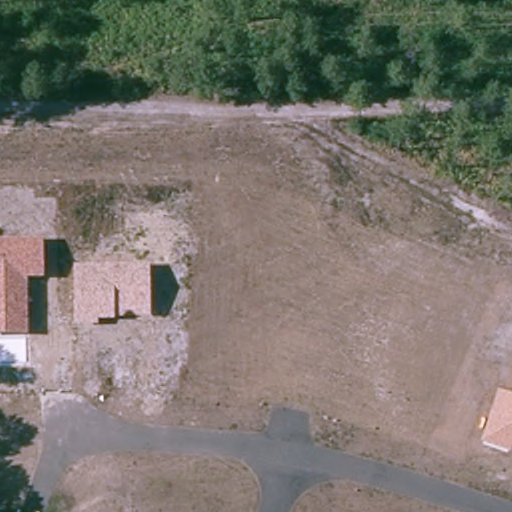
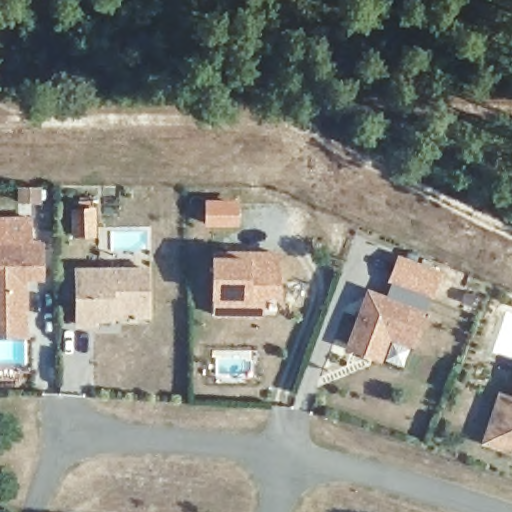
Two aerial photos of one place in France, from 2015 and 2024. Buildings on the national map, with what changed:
unchanged [(0,241),(43,241),(44,282),(27,282),(29,337),(0,337),(0,241)]
new [(251,255),(251,250),(281,250),(281,298),(263,298),(264,318),(212,317),(211,297),(212,255),(251,255)]
new [(386,295),(391,283),(387,281),(398,254),(442,271),(432,301),(429,299),(426,309),(429,311),(416,348),(391,339),(382,360),(344,348),(367,288),(386,295)]
unchanged [(71,267),(150,266),(153,322),(97,323),(97,330),(73,328),(71,267)]
unchanged [(481,442),(497,391),(512,396),(512,452),(481,442)]

